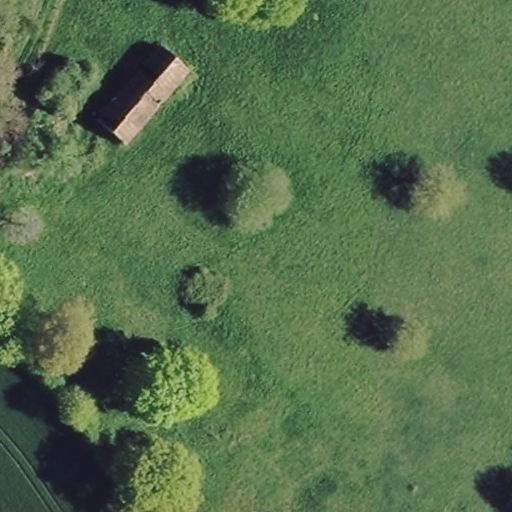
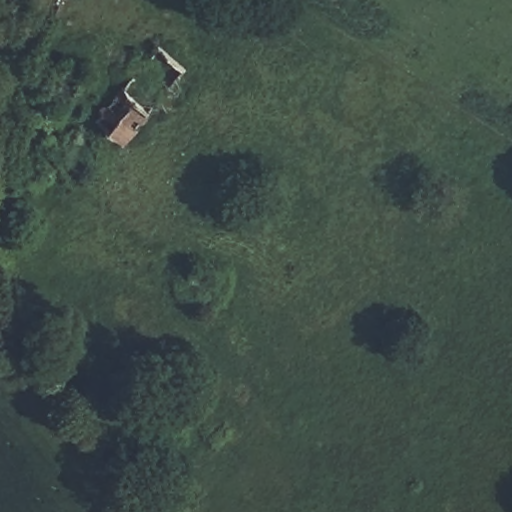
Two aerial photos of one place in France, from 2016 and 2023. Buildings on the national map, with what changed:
unchanged [(155,49),(180,64),(123,143),(100,126),(155,49)]

